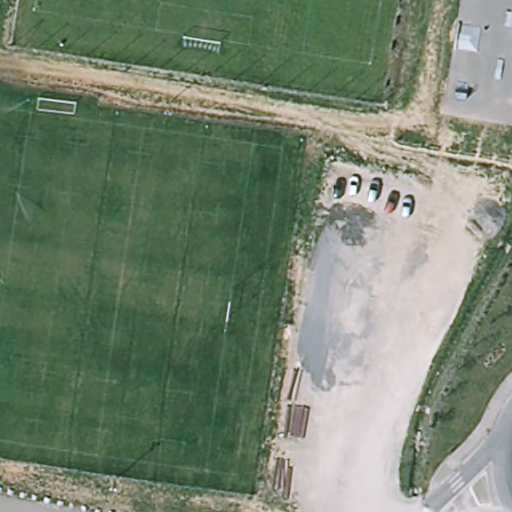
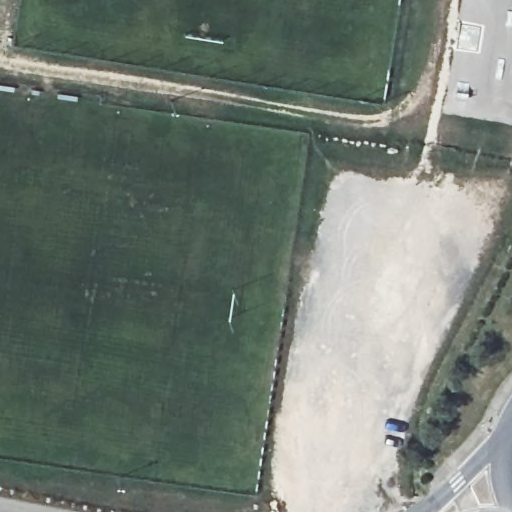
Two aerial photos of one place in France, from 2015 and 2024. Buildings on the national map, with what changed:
[]

